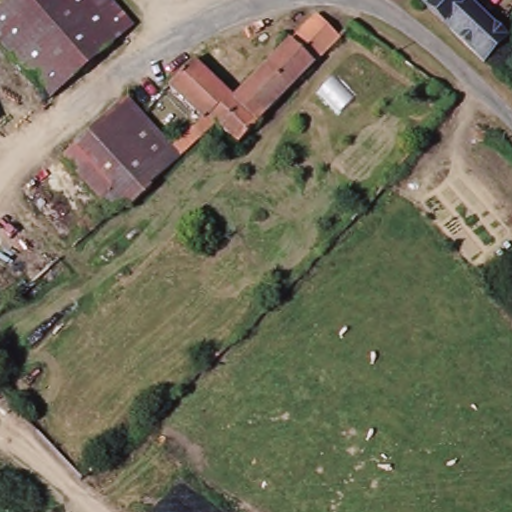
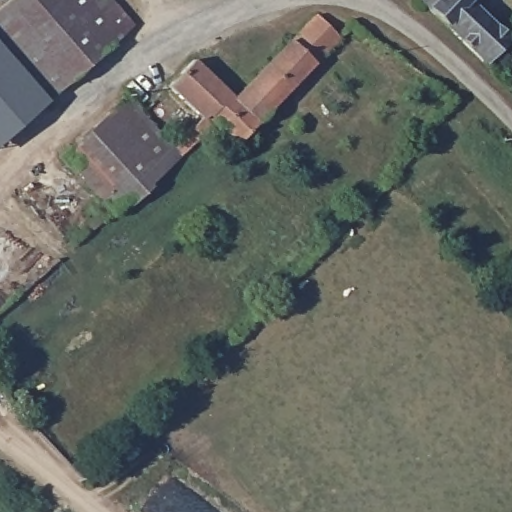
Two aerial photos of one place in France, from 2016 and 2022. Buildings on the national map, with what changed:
unchanged [(137,29),(50,99),(45,95),(37,102),(26,89),(12,74),(21,64),(0,37),(0,11),(14,0),(115,0),(115,1),(137,29)]
unchanged [(470,0),(506,37),(482,62),(423,0),(470,0)]
unchanged [(322,12),(345,37),(327,52),(317,62),(293,37),(322,12)]
new [(0,143),(0,37),(21,64),(12,74),(26,89),(37,102),(45,95),(50,99),(0,143)]
unchanged [(317,62),(257,115),(234,92),(293,37),(317,62)]
unchanged [(257,115),(237,134),(215,116),(192,138),(182,127),(190,117),(195,120),(202,112),(172,81),(199,57),(234,92),(257,115)]
unchanged [(95,200),(102,193),(62,152),(127,92),(184,151),(150,184),(152,188),(132,207),(126,203),(111,217),(95,200)]
demolished [(92,231),(82,221),(94,211),(103,220),(92,231)]

